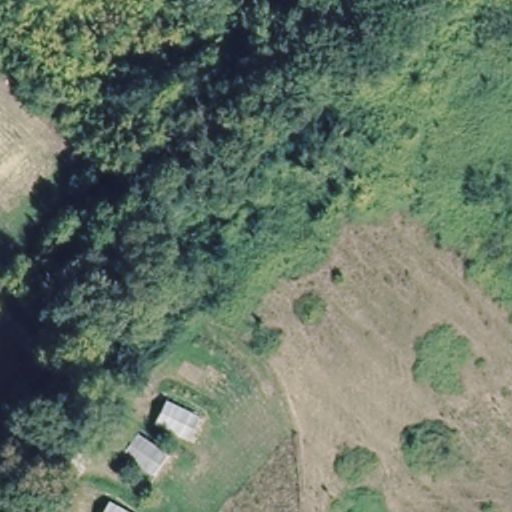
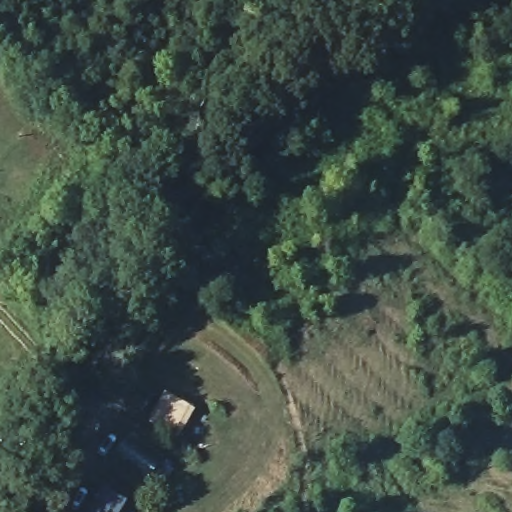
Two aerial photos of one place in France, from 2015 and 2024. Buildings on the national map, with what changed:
unchanged [(201,415),(189,441),(154,422),(165,397),(201,415)]
unchanged [(167,452),(149,479),(119,458),(137,430),(167,452)]
unchanged [(132,512),(103,512),(111,500),(132,512)]

